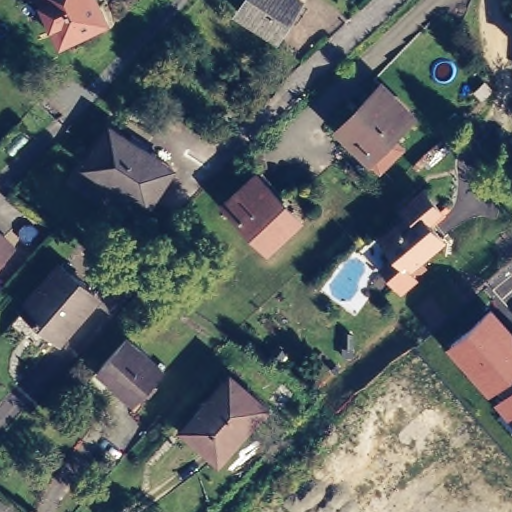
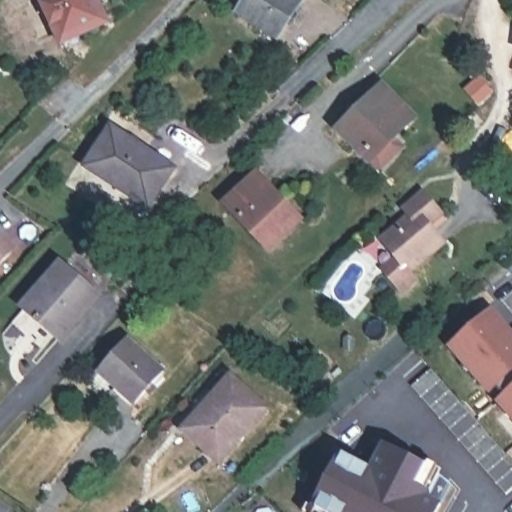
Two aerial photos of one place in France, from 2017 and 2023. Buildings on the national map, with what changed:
unchanged [(103,14),(58,37),(40,0),(97,0),(103,14)]
unchanged [(246,0),(298,0),(276,33),(239,9),(246,0)]
unchanged [(367,159),(363,154),(334,124),(378,81),(407,111),(384,133),(389,138),(367,159)]
unchanged [(111,119),(174,159),(149,197),(87,157),(111,119)]
unchanged [(257,176),(299,220),(269,249),(227,205),(257,176)]
unchanged [(400,277),(381,256),(394,243),(379,224),(397,211),(398,212),(408,203),(401,195),(419,178),(437,198),(424,209),(439,227),(407,256),(414,264),(400,277)]
unchanged [(0,251),(0,223),(14,236),(0,251)]
unchanged [(73,261),(106,290),(68,331),(35,302),(73,261)]
unchanged [(494,401),(502,395),(496,388),(489,393),(446,346),(492,306),(512,328),(512,421),(494,401)]
unchanged [(126,329),(161,361),(133,393),(98,360),(126,329)]
unchanged [(239,369),(275,403),(222,463),(186,429),(239,369)]
new [(341,453),(369,468),(382,442),(426,464),(436,468),(426,492),(443,502),(438,512),(307,512),(310,505),(341,453)]

